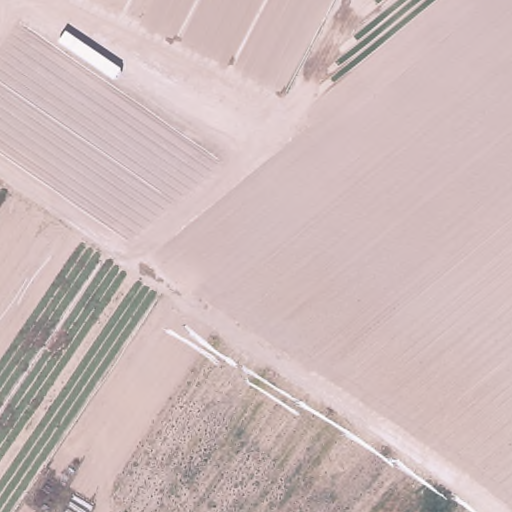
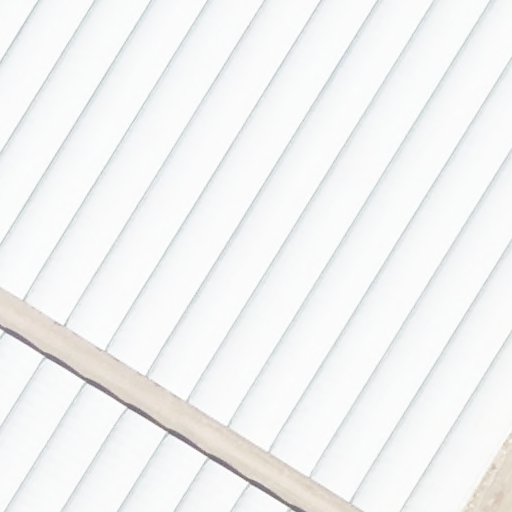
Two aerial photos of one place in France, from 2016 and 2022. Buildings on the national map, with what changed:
new [(360,512),(0,288),(0,0),(512,0),(512,430),(461,512),(360,512)]
new [(0,512),(0,330),(292,512),(0,512)]

